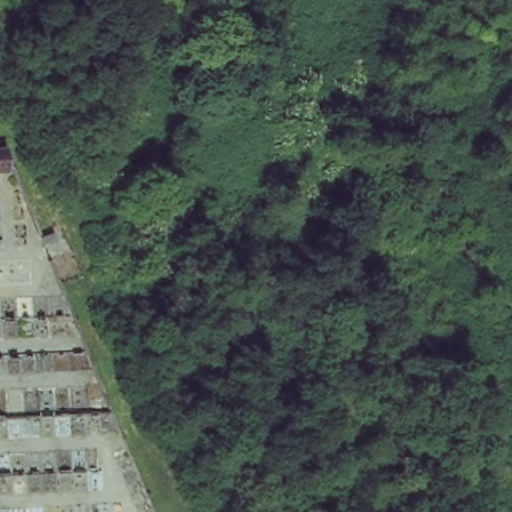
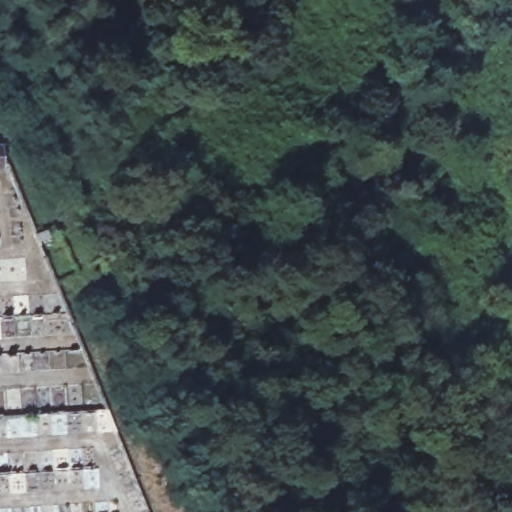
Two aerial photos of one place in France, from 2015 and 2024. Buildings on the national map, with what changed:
unchanged [(0,167),(0,164),(1,167),(0,167)]

